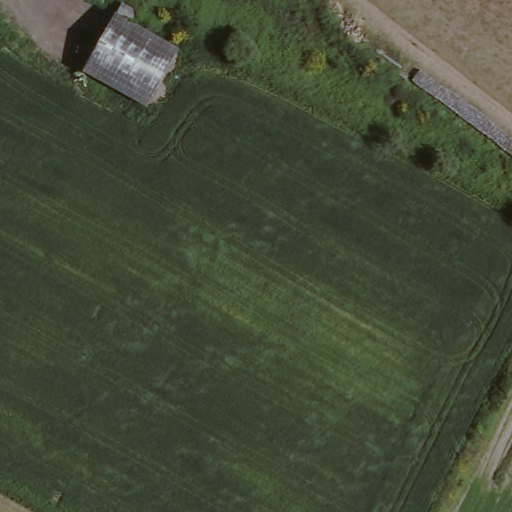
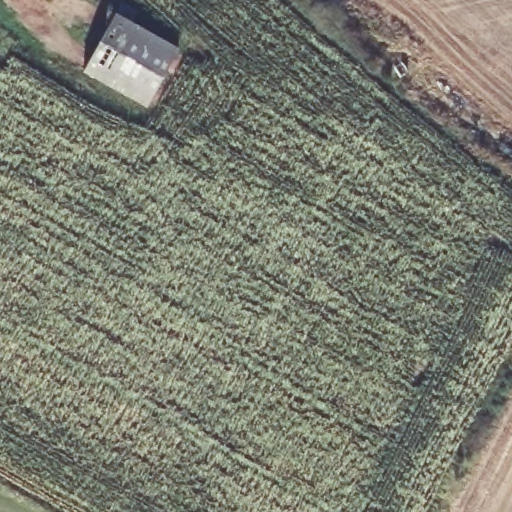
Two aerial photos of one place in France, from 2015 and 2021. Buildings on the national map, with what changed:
unchanged [(144,14),(138,26),(184,54),(152,109),(90,73),(129,6),(144,14)]

